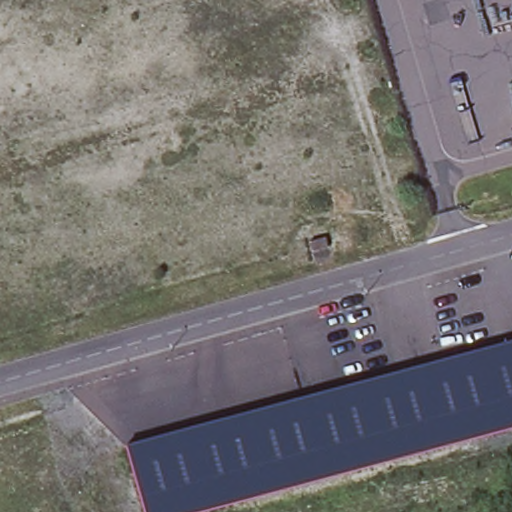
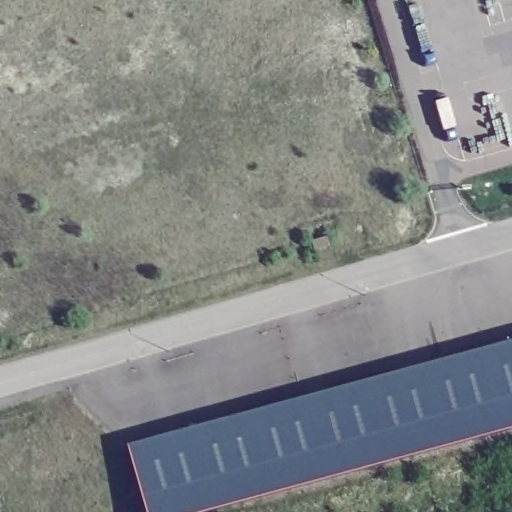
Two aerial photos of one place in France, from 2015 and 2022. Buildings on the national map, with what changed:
unchanged [(312,251),(310,241),(326,236),(329,246),(312,251)]
unchanged [(192,512),(143,512),(123,443),(512,337),(512,425),(192,512)]

